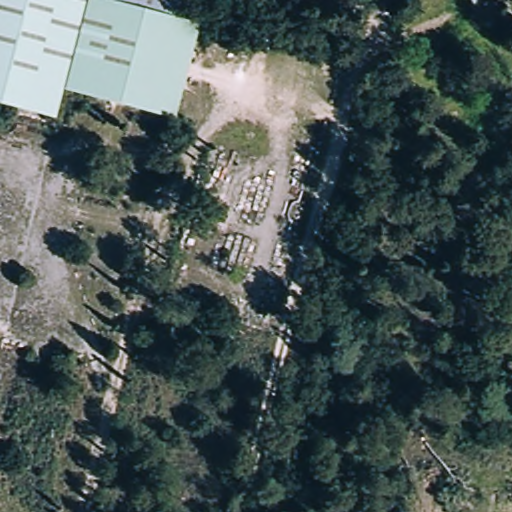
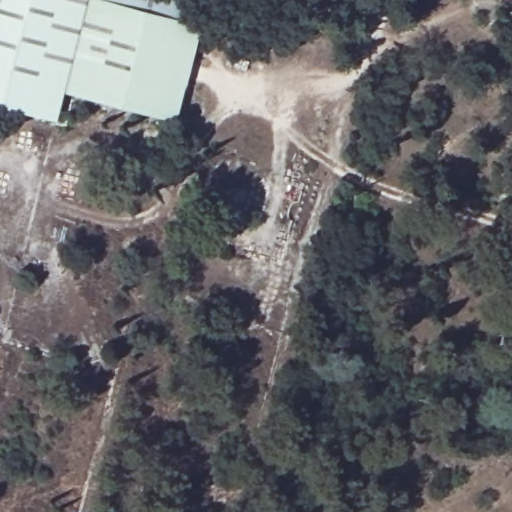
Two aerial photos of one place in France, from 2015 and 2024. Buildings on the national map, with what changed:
unchanged [(196,20),(177,111),(61,89),(52,116),(0,101),(0,0),(181,0),(177,12),(196,20)]

